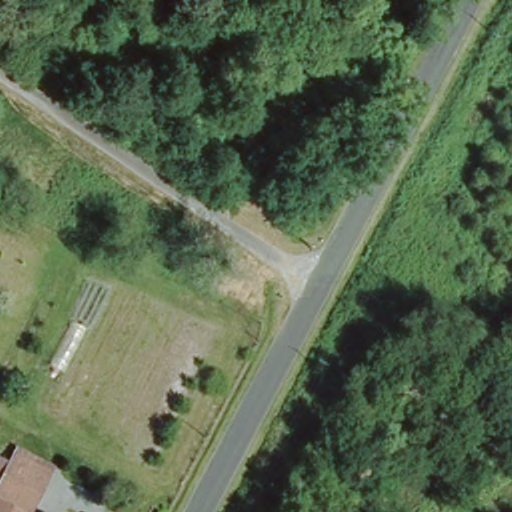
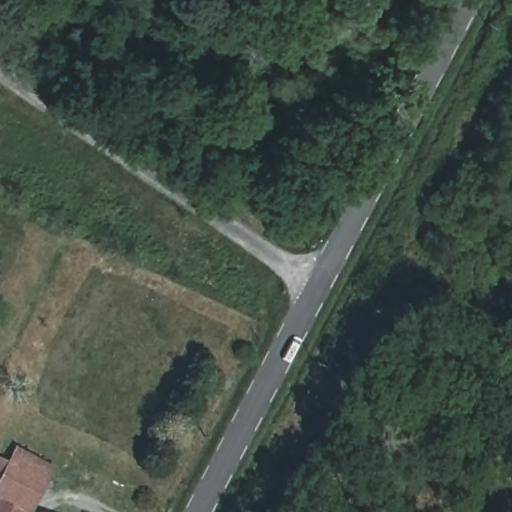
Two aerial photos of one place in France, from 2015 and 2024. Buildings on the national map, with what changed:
unchanged [(26,512),(23,511),(23,512),(0,512),(0,456),(8,460),(13,449),(51,470),(31,512),(26,512)]

